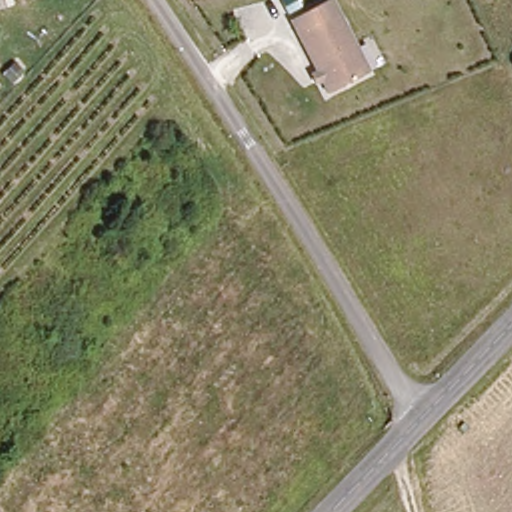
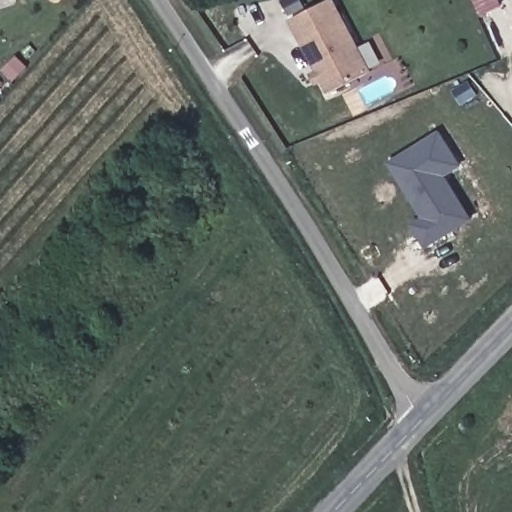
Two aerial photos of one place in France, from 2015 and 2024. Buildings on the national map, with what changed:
unchanged [(0,0),(13,0),(0,3),(0,0)]
unchanged [(330,0),(370,73),(331,95),(291,21),(330,0)]
new [(474,0),(501,0),(503,5),(481,15),(474,0)]
new [(411,223),(422,216),(387,161),(439,129),(462,165),(446,176),(473,219),(426,248),(411,223)]

